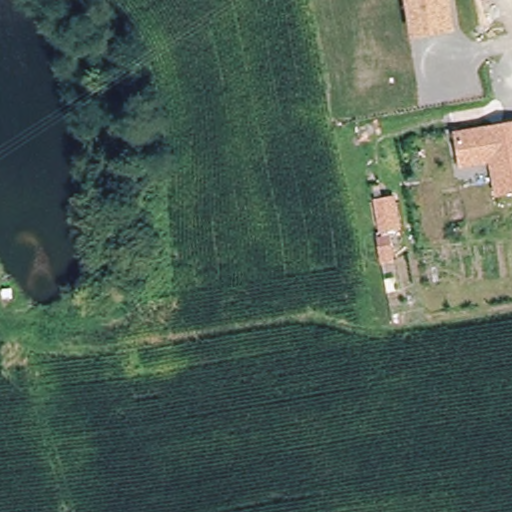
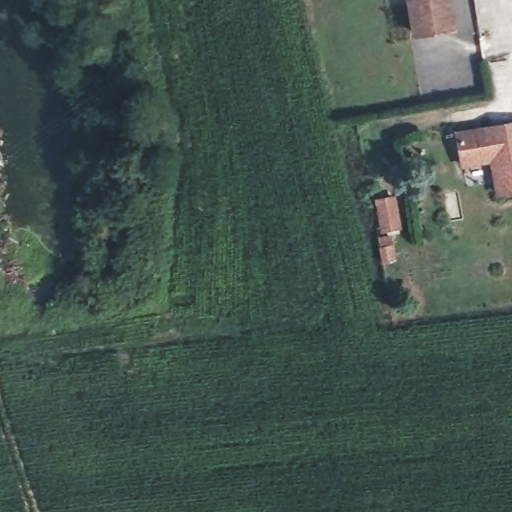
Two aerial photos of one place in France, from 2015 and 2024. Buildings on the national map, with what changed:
unchanged [(455,29),(412,35),(405,0),(450,0),(455,29)]
unchanged [(494,195),(488,161),(460,166),(453,131),(512,121),(512,192),(494,195)]

